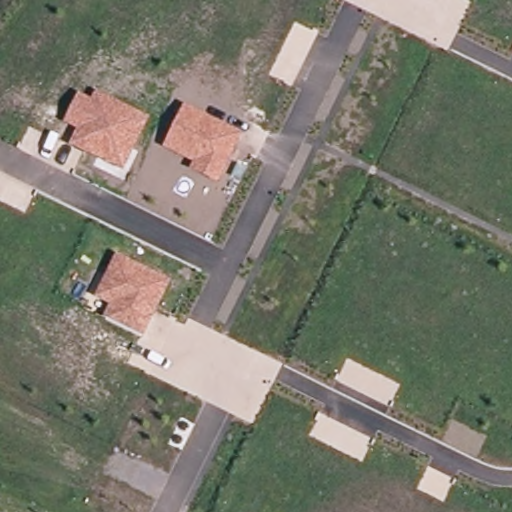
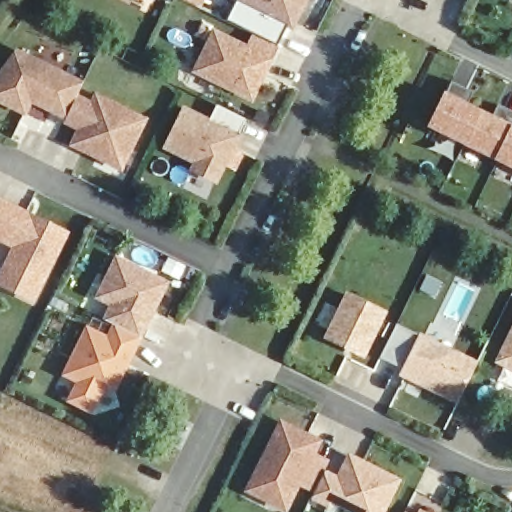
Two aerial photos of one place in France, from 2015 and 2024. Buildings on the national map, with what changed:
new [(160,1),(157,0),(160,0),(160,1)]
new [(172,4),(165,0),(174,0),(172,4)]
new [(252,33),(228,20),(235,3),(232,0),(309,0),(293,32),(288,30),(280,47),(252,33)]
new [(248,44),(252,33),(280,47),(253,102),(193,71),(213,28),(248,44)]
new [(65,119),(33,105),(26,117),(0,105),(0,72),(1,70),(17,49),(83,81),(77,93),(65,119)]
new [(445,93),(453,82),(475,92),(467,104),(492,115),(499,105),(512,111),(512,171),(428,129),(445,93)]
unchanged [(68,146),(76,130),(63,125),(77,93),(91,100),(95,91),(151,118),(124,172),(68,146)]
unchanged [(184,104),(242,135),(218,184),(190,170),(193,162),(164,147),(184,104)]
new [(0,288),(0,273),(12,248),(0,243),(0,199),(1,198),(71,233),(36,305),(0,288)]
unchanged [(109,305),(94,299),(116,253),(172,280),(142,335),(102,318),(109,305)]
new [(323,340),(347,292),(389,312),(366,360),(323,340)]
new [(118,392),(103,396),(62,376),(87,326),(108,335),(114,323),(142,335),(118,392)]
new [(512,327),(512,371),(494,363),(512,327)]
new [(421,333),(479,362),(458,405),(400,376),(421,333)]
new [(323,440),(317,455),(329,460),(323,473),(314,491),(301,485),(288,511),(245,491),(280,419),(323,440)]
new [(348,452),(403,480),(387,512),(347,512),(331,504),(329,509),(312,500),(314,491),(324,470),(338,476),(348,452)]
new [(427,512),(418,512),(420,508),(427,512)]
new [(404,512),(405,511),(406,512),(404,512)]

